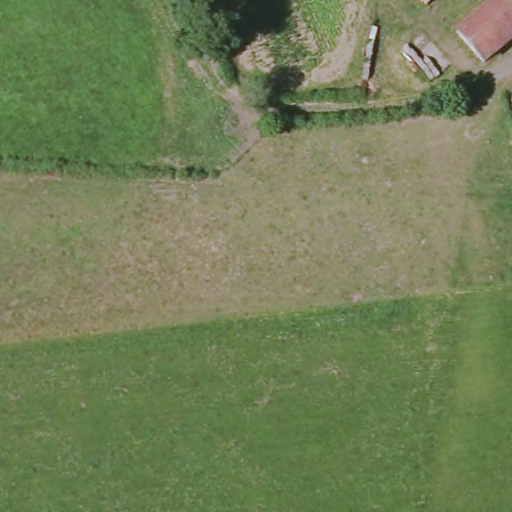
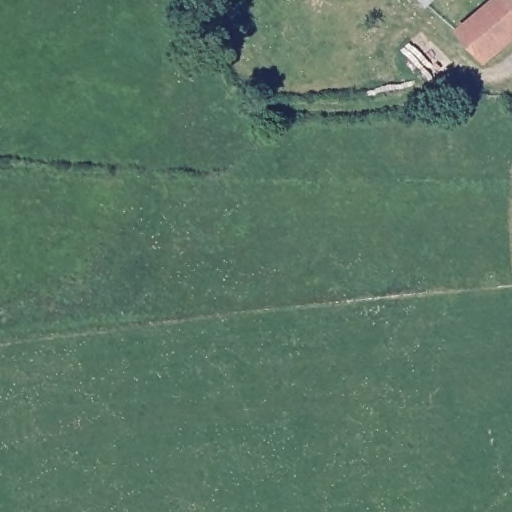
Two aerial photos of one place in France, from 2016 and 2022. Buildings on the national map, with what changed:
unchanged [(430,5),(426,0),(436,0),(430,5)]
unchanged [(456,32),(494,0),(512,0),(512,39),(483,62),(456,32)]

